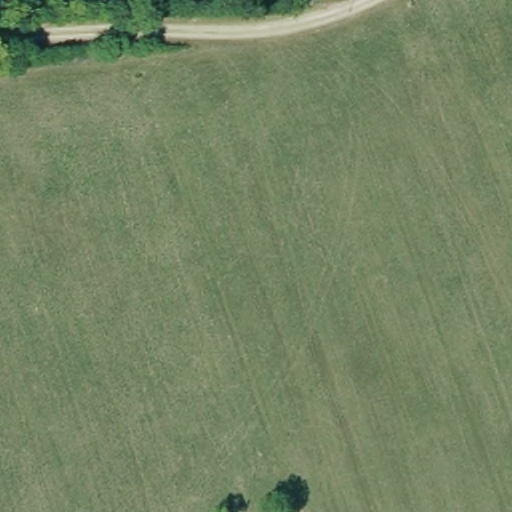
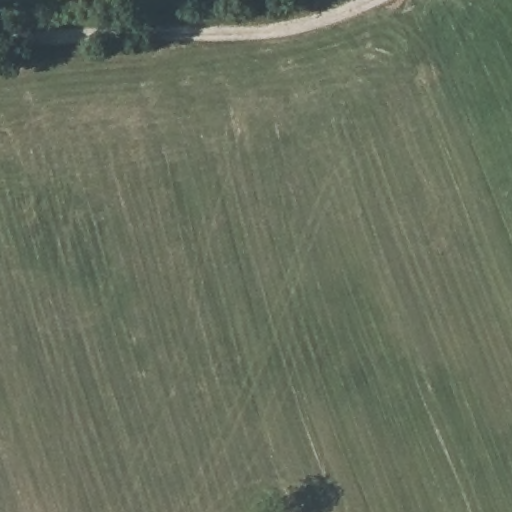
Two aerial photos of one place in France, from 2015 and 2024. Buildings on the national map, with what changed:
unchanged [(226,0),(245,0),(227,4),(226,0)]

